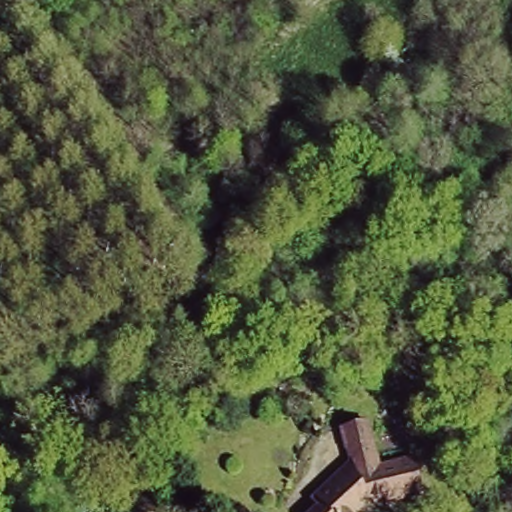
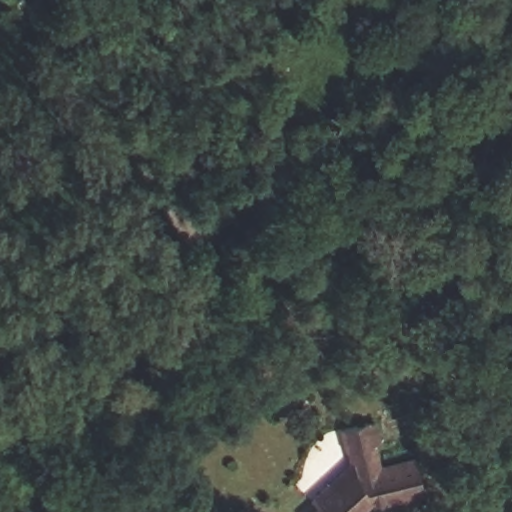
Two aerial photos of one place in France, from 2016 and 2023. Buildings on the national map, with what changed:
unchanged [(312,512),(321,505),(312,496),(349,460),(341,429),(373,420),(381,462),(419,454),(424,494),(369,505),(364,512),(312,512)]
unchanged [(255,512),(225,512),(245,497),(255,512)]

